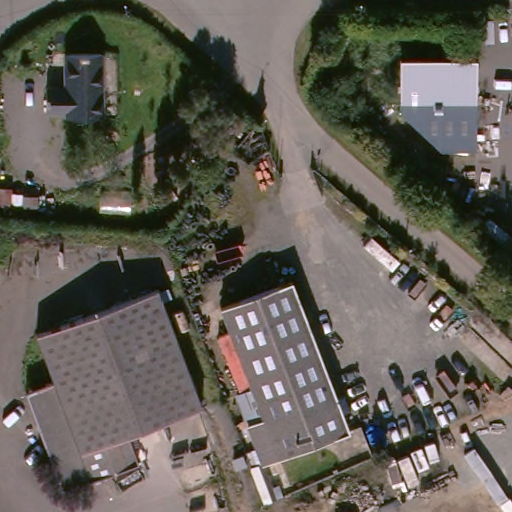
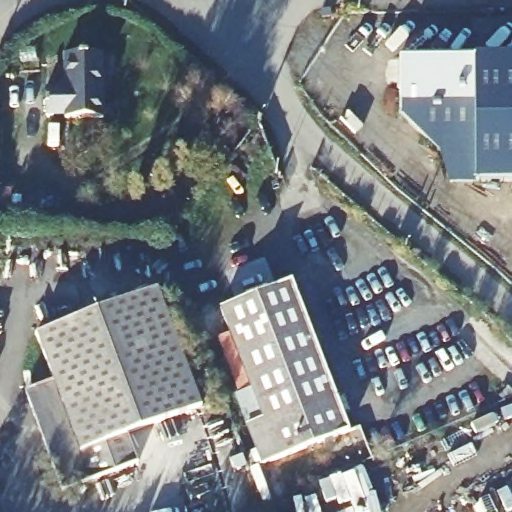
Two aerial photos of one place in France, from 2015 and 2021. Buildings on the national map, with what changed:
unchanged [(51,83),(71,82),(71,49),(109,46),(109,110),(51,113),(51,83)]
unchanged [(400,55),(477,55),(479,136),(433,138),(399,109),(400,55)]
new [(479,136),(477,55),(512,55),(512,181),(478,181),(475,182),(449,182),(439,151),(399,114),(399,109),(433,138),(479,136)]
unchanged [(259,462),(246,428),(264,421),(223,308),(293,282),(348,429),(259,462)]
unchanged [(138,463),(81,484),(79,484),(64,483),(31,391),(59,379),(42,333),(159,289),(202,404),(127,433),(138,463)]

